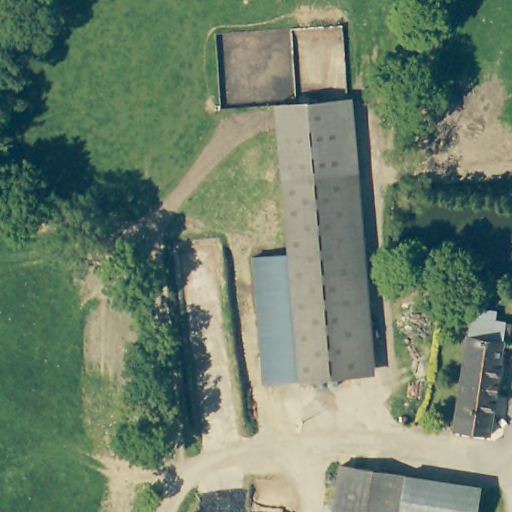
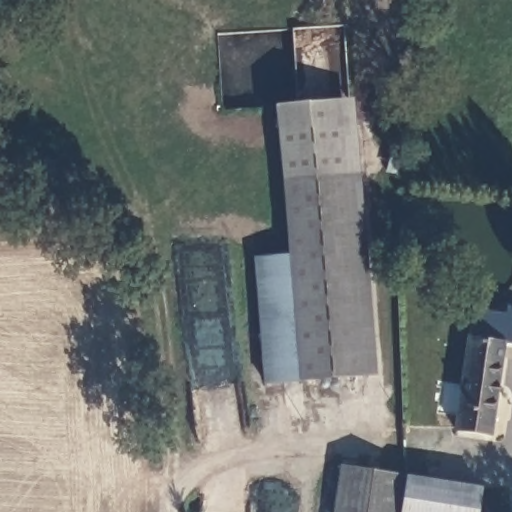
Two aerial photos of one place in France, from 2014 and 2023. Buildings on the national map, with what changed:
unchanged [(302,254),(301,242),(286,104),(347,97),(364,244),(378,372),(316,379),(302,254)]
unchanged [(280,382),(266,257),(302,254),(316,379),(280,382)]
unchanged [(460,431),(464,335),(465,311),(497,312),(499,323),(507,324),(506,338),(502,337),(497,432),(460,431)]
unchanged [(432,481),(429,512),(337,512),(344,466),(426,481),(432,481)]
unchanged [(477,512),(429,512),(432,481),(480,492),(477,512)]

